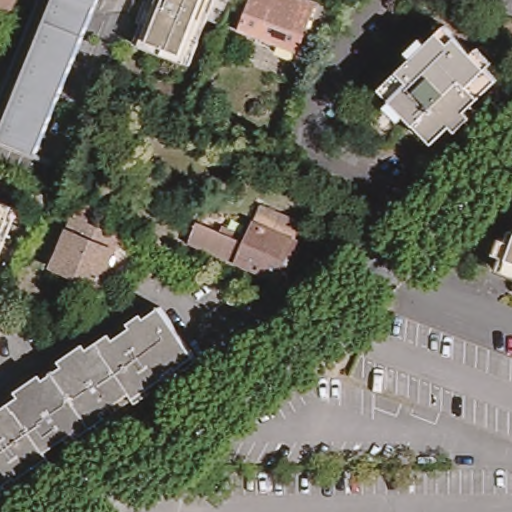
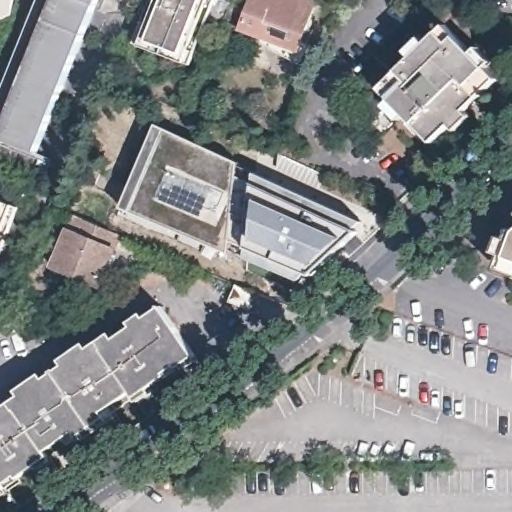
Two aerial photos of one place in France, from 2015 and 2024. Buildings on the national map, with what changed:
demolished [(0,1),(0,0),(12,0),(11,5),(0,1)]
new [(0,20),(0,0),(13,0),(11,16),(0,20)]
unchanged [(0,142),(0,91),(38,0),(96,0),(32,155),(0,142)]
unchanged [(202,0),(185,47),(147,34),(159,0),(202,0)]
unchanged [(243,32),(255,0),(299,0),(319,7),(301,54),(243,32)]
unchanged [(455,124),(435,142),(411,116),(405,121),(390,106),(396,101),(386,90),(418,59),(413,54),(429,38),(435,44),(453,27),(478,53),(484,47),(499,63),(493,69),(503,80),(471,110),(476,116),(461,130),(455,124)]
new [(239,165),(257,180),(360,229),(318,276),(311,283),(247,256),(249,246),(232,240),(231,254),(124,207),(159,125),(239,165)]
unchanged [(29,206),(22,202),(0,192),(0,174),(38,190),(29,206)]
demolished [(285,282),(195,247),(207,217),(255,237),(274,190),(316,207),(285,282)]
unchanged [(22,202),(0,260),(0,194),(22,202)]
unchanged [(100,297),(99,297),(53,278),(74,227),(81,211),(104,220),(98,236),(121,246),(101,296),(100,297)]
unchanged [(507,258),(500,256),(509,234),(512,235),(512,275),(502,271),(507,258)]
unchanged [(259,292),(252,310),(229,301),(236,282),(259,292)]
unchanged [(0,491),(0,420),(4,417),(1,411),(13,403),(17,409),(105,348),(102,343),(115,335),(118,340),(167,306),(199,357),(0,491)]

